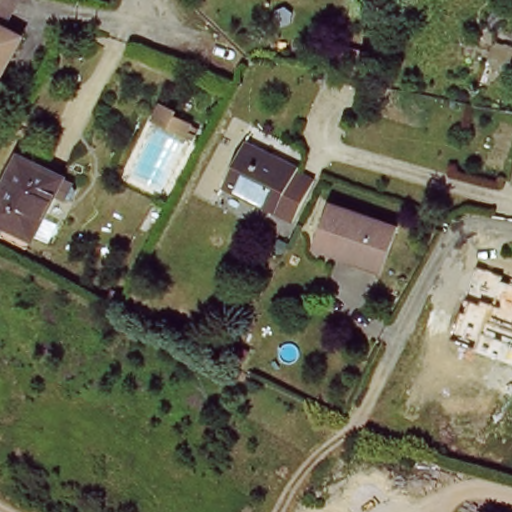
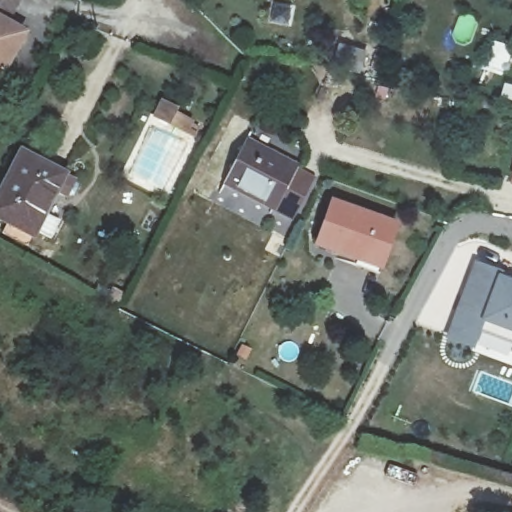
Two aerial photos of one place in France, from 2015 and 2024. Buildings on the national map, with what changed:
unchanged [(11,17),(20,20),(0,62),(0,0),(18,0),(11,17)]
unchanged [(166,102),(182,112),(173,127),(154,118),(166,102)]
unchanged [(306,167),(303,173),(317,178),(296,218),(226,188),(251,143),(306,167)]
unchanged [(31,242),(0,225),(0,199),(28,153),(74,178),(31,242)]
unchanged [(352,261),(356,255),(318,239),(341,199),(403,226),(384,259),(377,273),(352,261)]
new [(471,351),(443,340),(472,263),(501,272),(497,278),(512,283),(512,346),(478,332),(471,351)]

